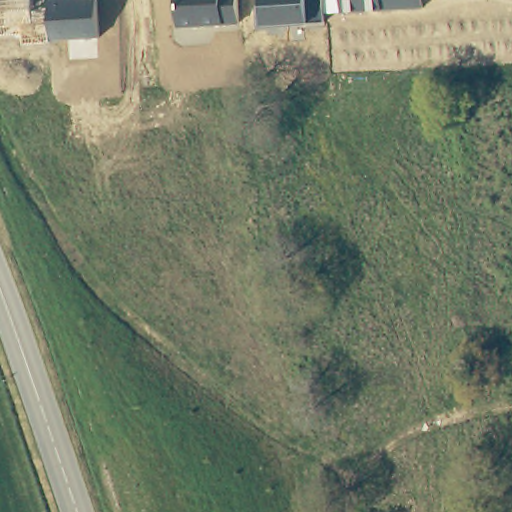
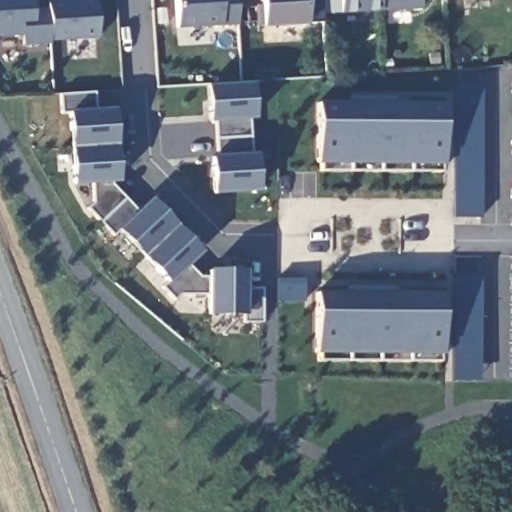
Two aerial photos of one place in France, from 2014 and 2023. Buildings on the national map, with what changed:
unchanged [(24,35),(0,37),(0,0),(35,0),(36,9),(51,8),(52,41),(25,44),(24,35)]
unchanged [(52,41),(51,8),(50,0),(99,0),(101,38),(52,41)]
unchanged [(178,27),(176,0),(240,0),(241,24),(178,27)]
unchanged [(326,13),(328,24),(307,24),(262,26),(261,0),(425,0),(425,7),(326,13)]
new [(253,118),(250,118),(251,136),(217,138),(216,120),(211,120),(208,84),(251,81),(253,118)]
new [(482,217),(454,217),(455,83),(482,83),(482,217)]
new [(96,109),(114,108),(116,144),(73,147),(71,112),(62,112),(61,93),(95,91),(96,109)]
new [(413,163),(412,170),(350,172),(351,162),(318,163),(318,103),(349,102),(443,104),(443,163),(413,163)]
new [(251,136),(252,154),(256,154),(258,190),(215,192),(213,156),(218,156),(217,138),(251,136)]
new [(116,144),(118,180),(113,180),(114,183),(126,197),(101,221),(89,207),(94,201),(93,181),(75,183),(73,147),(116,144)]
new [(126,197),(139,210),(151,199),(176,225),(145,255),(121,229),(115,235),(101,221),(126,197)]
new [(176,225),(201,251),(189,262),(202,276),(210,276),(210,292),(183,292),(175,299),(163,286),(169,280),(145,255),(176,225)]
new [(210,270),(246,270),(246,287),(264,287),(264,320),(245,320),(245,311),(209,311),(210,292),(210,270)]
new [(481,381),(453,381),(454,274),(481,274),(481,381)]
new [(444,295),(446,353),(409,354),(409,360),(347,361),(347,355),(319,355),(319,293),(350,293),(444,295)]
new [(496,456),(512,455),(512,512),(499,512),(496,456)]

